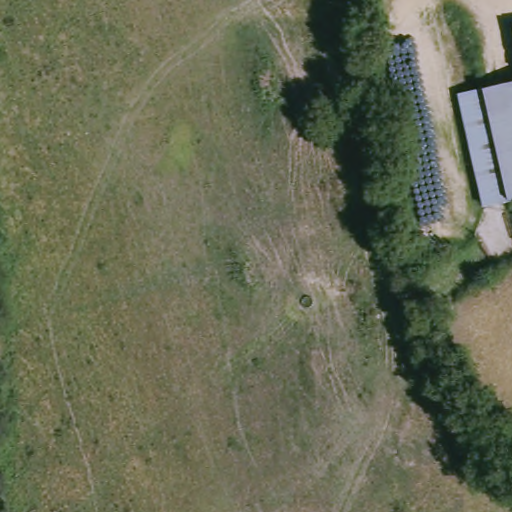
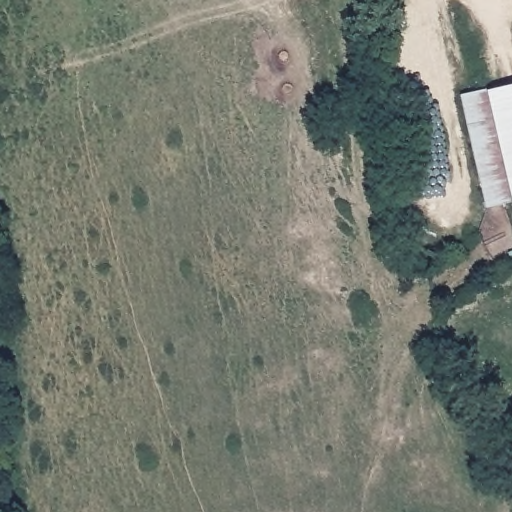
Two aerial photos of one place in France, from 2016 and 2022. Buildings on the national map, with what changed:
unchanged [(512,83),(512,200),(485,205),(461,94),(512,83)]

